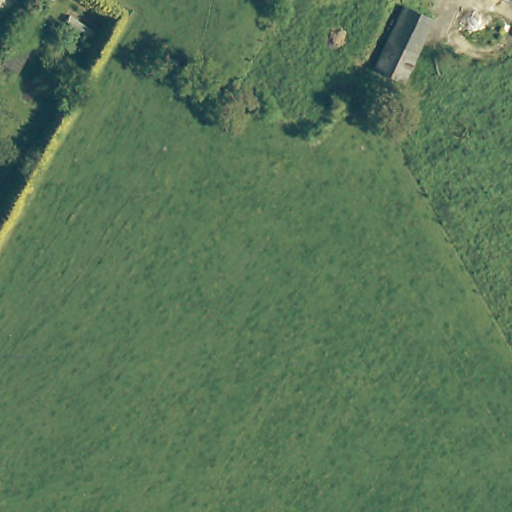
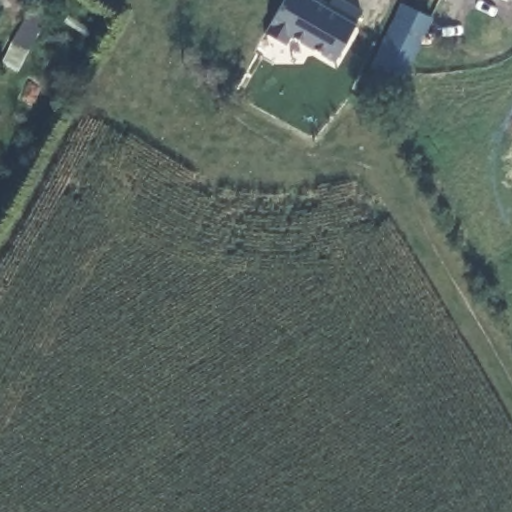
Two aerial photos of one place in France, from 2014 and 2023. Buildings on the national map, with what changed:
unchanged [(33,0),(54,0),(20,70),(1,62),(33,0)]
new [(286,44),(266,32),(284,0),(313,0),(327,9),(332,0),(340,0),(362,12),(355,25),(336,60),(290,35),(286,44)]
unchanged [(402,5),(426,17),(397,81),(371,70),(402,5)]

